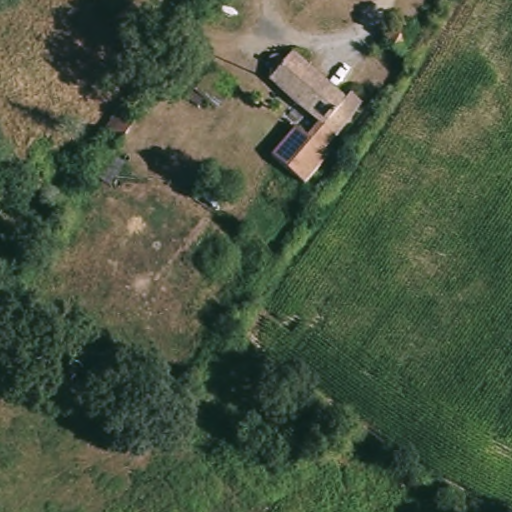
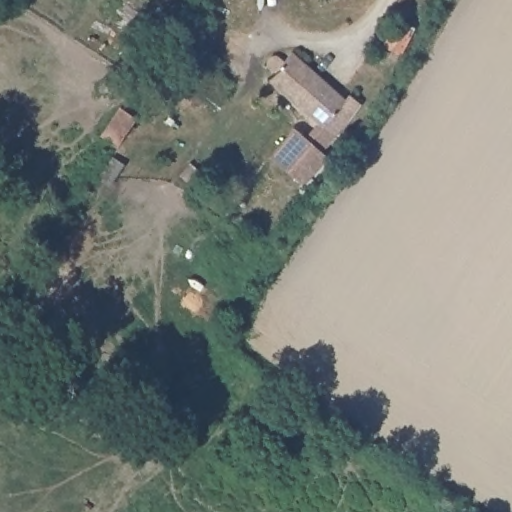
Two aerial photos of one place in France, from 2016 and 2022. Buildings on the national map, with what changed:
unchanged [(318,153),(323,158),(298,185),(266,156),(291,129),(306,142),(319,128),(293,104),(265,78),(267,75),(265,64),(268,58),(273,55),(281,56),(285,59),(290,53),(317,78),(346,104),(353,96),(362,104),(318,153)]
unchanged [(137,105),(114,137),(98,126),(119,93),(137,105)]

